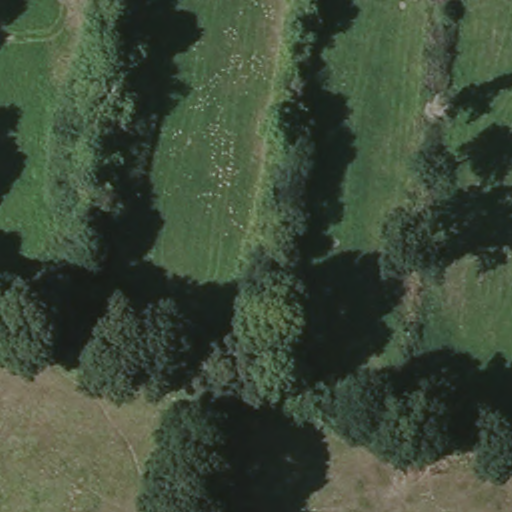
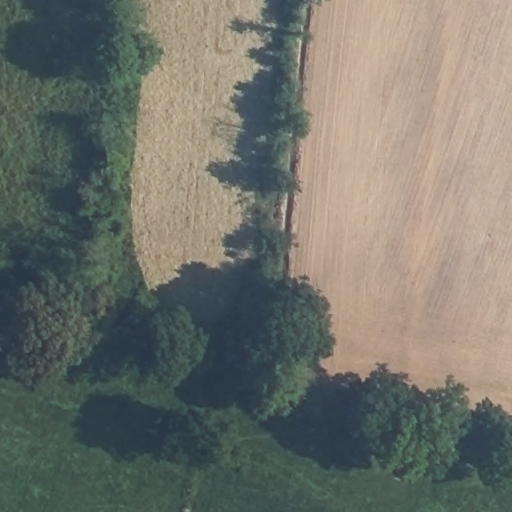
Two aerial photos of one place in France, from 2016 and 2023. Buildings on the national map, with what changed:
[]

